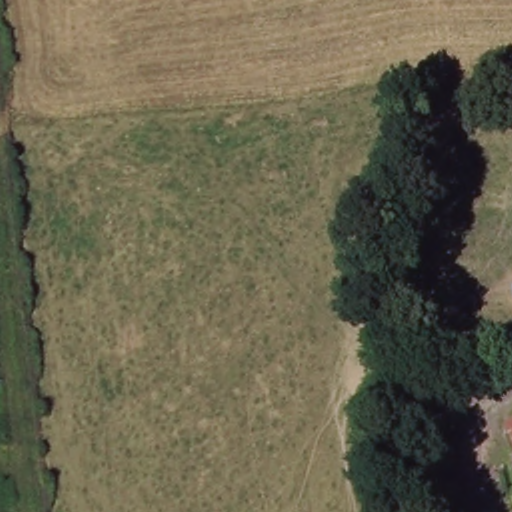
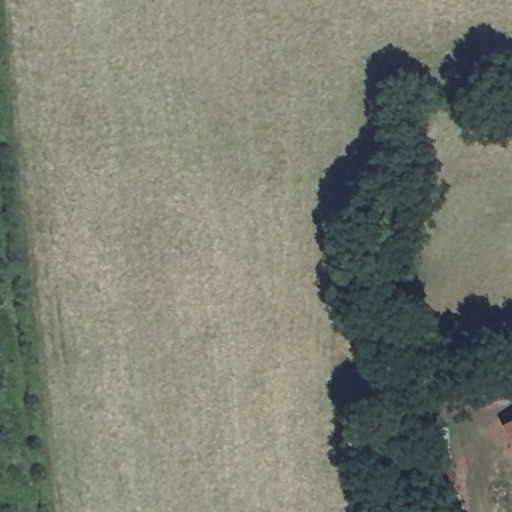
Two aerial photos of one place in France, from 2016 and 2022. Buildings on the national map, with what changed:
unchanged [(506,426),(512,423),(512,437),(506,426)]

